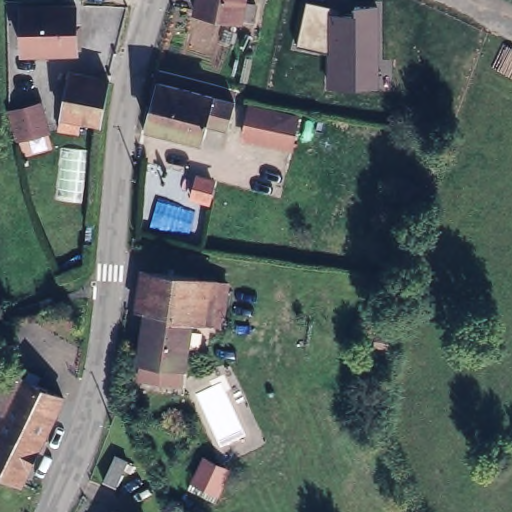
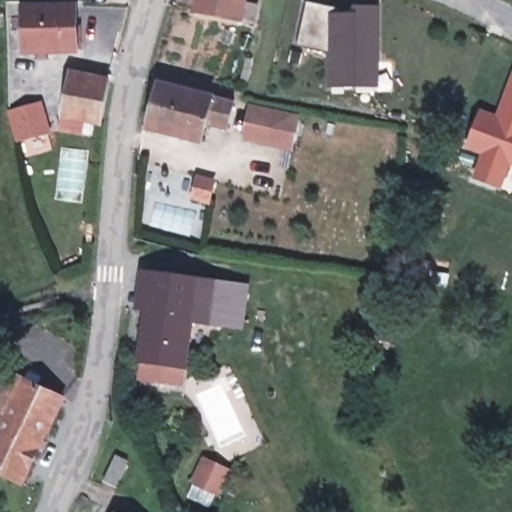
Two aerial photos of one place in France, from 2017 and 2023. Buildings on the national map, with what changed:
unchanged [(75,44),(48,45),(48,52),(34,53),(35,45),(21,46),(19,2),(73,0),(75,44)]
unchanged [(253,2),(249,21),(193,11),(195,0),(242,0),(253,2)]
unchanged [(331,86),(329,51),(298,44),(308,2),(332,7),(378,6),(378,86),(331,86)]
new [(470,106),(488,114),(509,69),(512,71),(512,165),(495,157),(484,182),(461,172),(473,147),(455,139),(470,106)]
unchanged [(232,92),(226,118),(203,112),(198,129),(145,115),(158,72),(232,92)]
unchanged [(54,118),(61,78),(103,86),(95,127),(54,118)]
unchanged [(293,152),(239,141),(248,102),(301,115),(293,152)]
unchanged [(34,105),(44,133),(13,145),(3,115),(34,105)]
unchanged [(201,168),(214,170),(213,183),(198,181),(201,168)]
new [(510,179),(512,175),(512,180),(510,179)]
unchanged [(179,361),(136,354),(146,266),(207,274),(207,276),(221,277),(216,309),(213,319),(203,318),(186,317),(179,361)]
unchanged [(23,382),(64,401),(22,484),(0,473),(0,435),(10,415),(0,410),(0,374),(21,384),(23,382)]
unchanged [(113,486),(104,480),(118,454),(128,460),(113,486)]
unchanged [(118,512),(119,508),(126,512),(118,512)]

